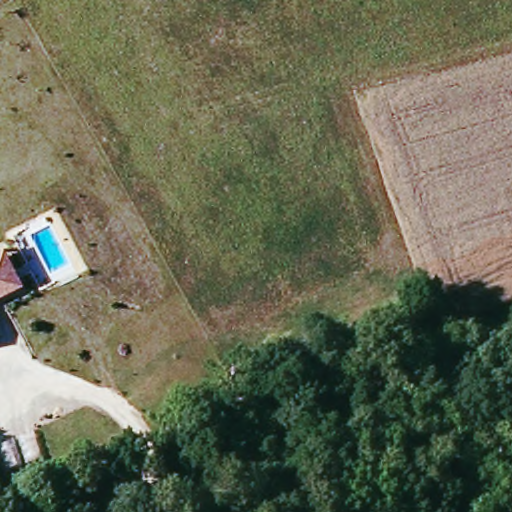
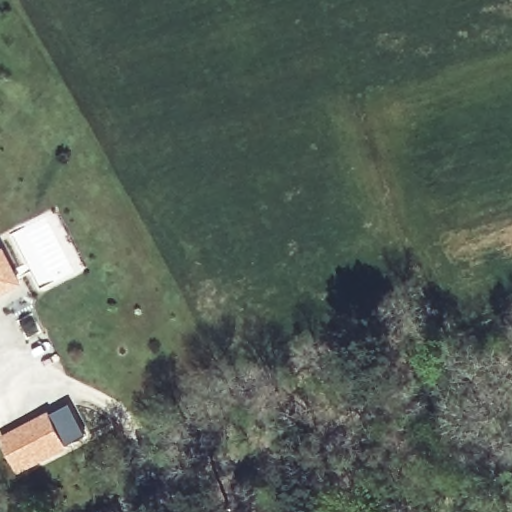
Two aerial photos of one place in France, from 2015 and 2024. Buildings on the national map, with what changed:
unchanged [(4,287),(0,289),(0,280),(4,287)]
new [(6,445),(3,440),(51,415),(70,405),(87,436),(68,447),(19,471),(6,445)]

